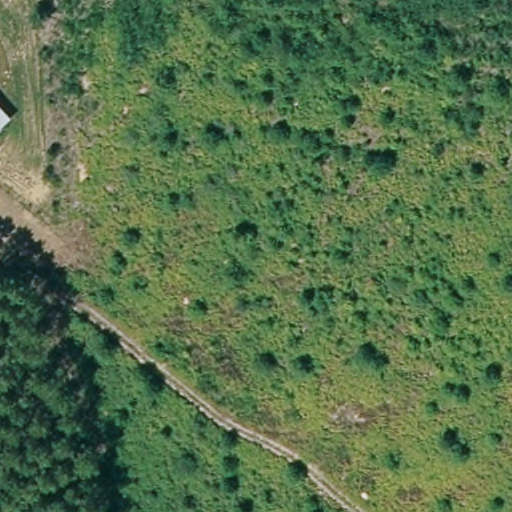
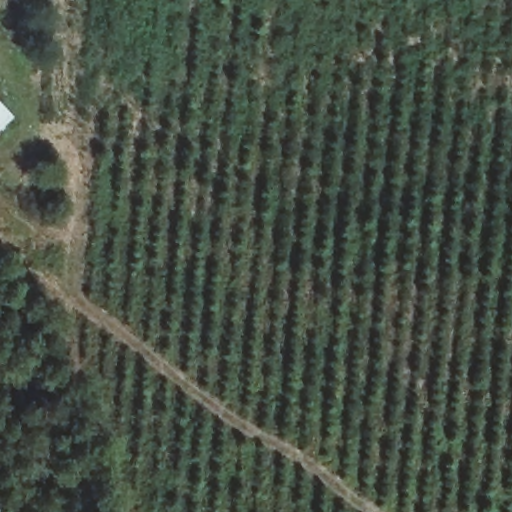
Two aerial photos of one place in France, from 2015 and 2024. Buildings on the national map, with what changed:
unchanged [(11,117),(0,128),(0,106),(11,117)]

